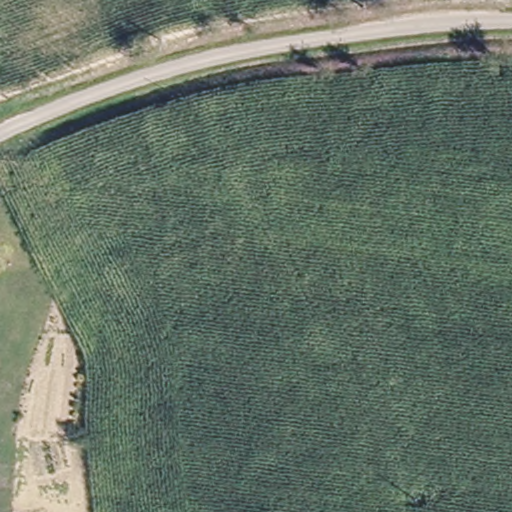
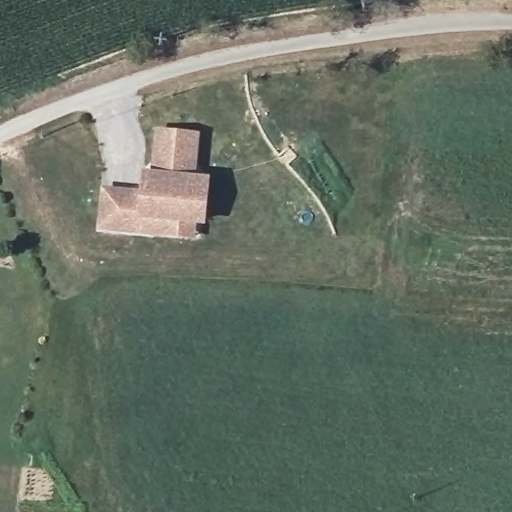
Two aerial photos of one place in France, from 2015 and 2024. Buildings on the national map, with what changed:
new [(141,190),(142,171),(152,173),(155,129),(200,134),(197,176),(210,177),(206,225),(197,225),(196,240),(97,230),(102,186),(141,190)]

